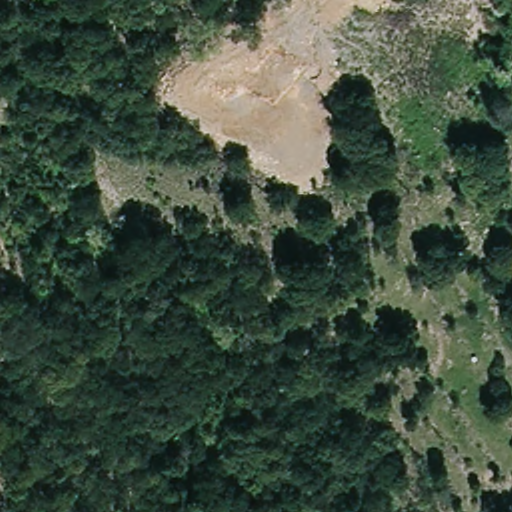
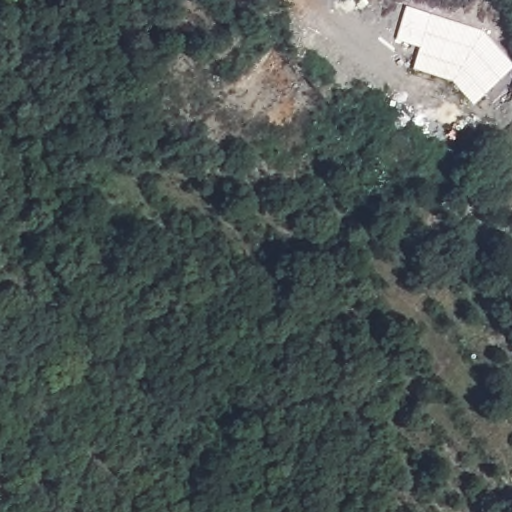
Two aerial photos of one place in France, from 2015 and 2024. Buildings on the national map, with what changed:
new [(414,69),(422,47),(398,39),(407,7),(484,32),(512,63),(512,70),(473,106),(452,81),(414,69)]

